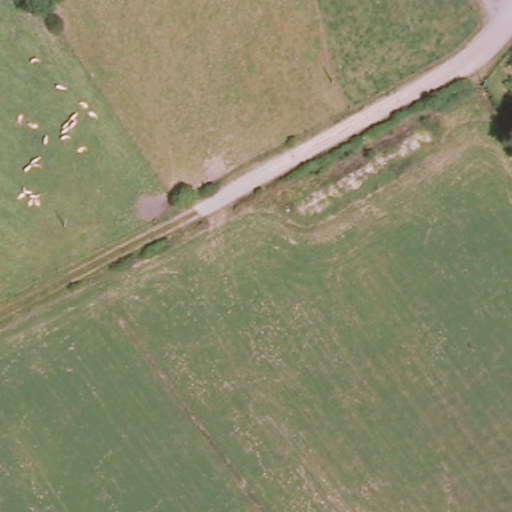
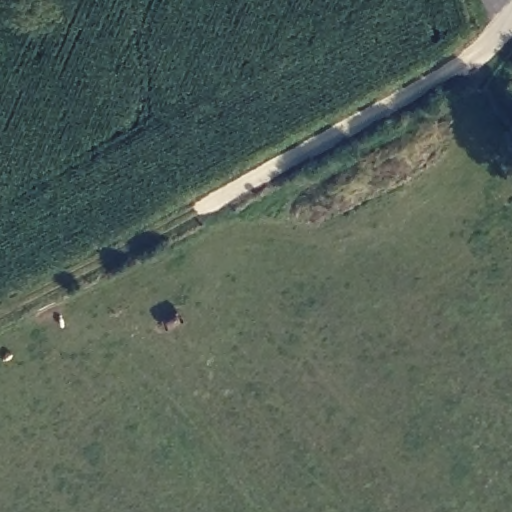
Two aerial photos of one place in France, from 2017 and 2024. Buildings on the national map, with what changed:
[]

